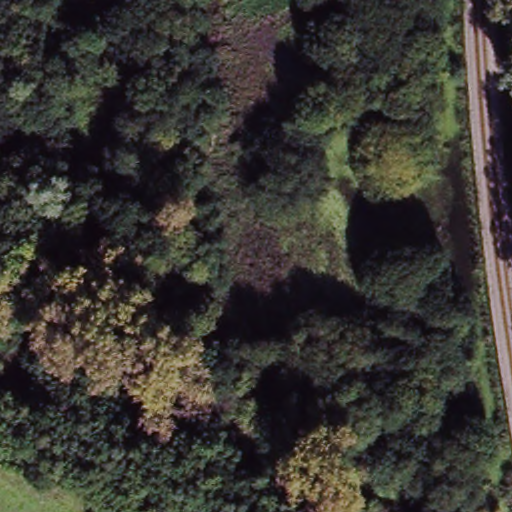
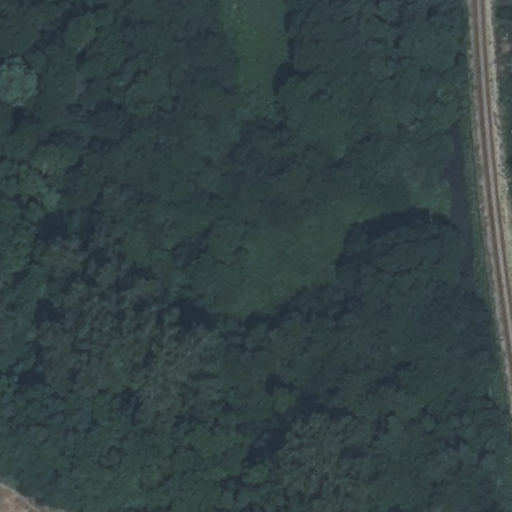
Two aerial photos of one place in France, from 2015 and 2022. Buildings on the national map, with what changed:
[]

